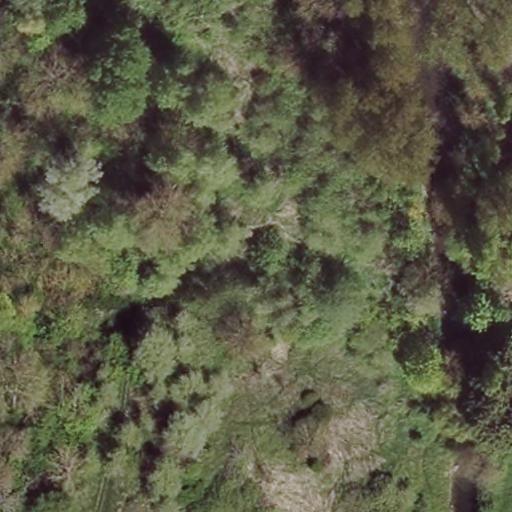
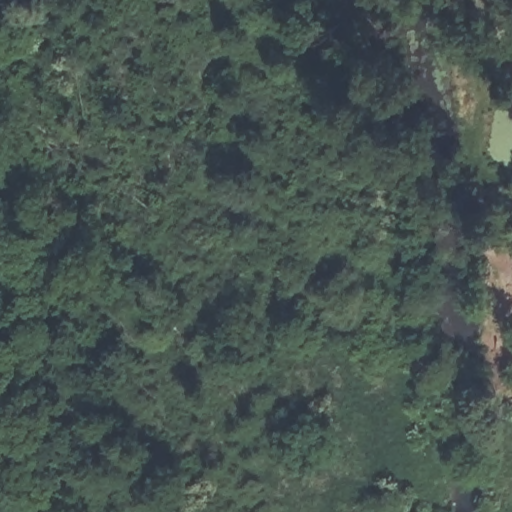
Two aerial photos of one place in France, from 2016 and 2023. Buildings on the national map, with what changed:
[]

